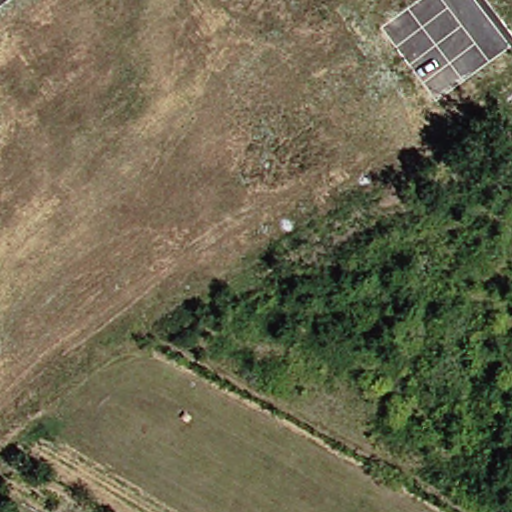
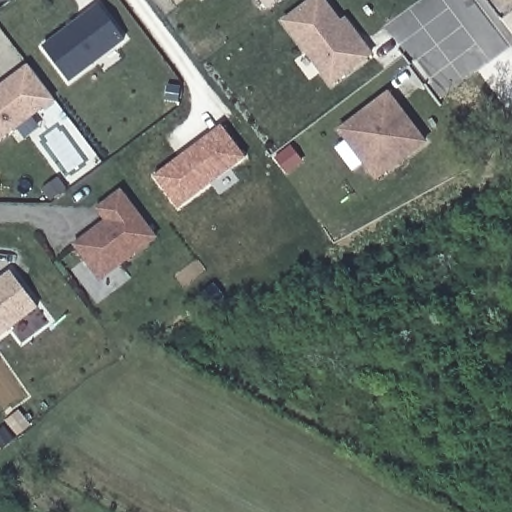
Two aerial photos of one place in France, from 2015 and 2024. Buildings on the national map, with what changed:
new [(375,55),(331,87),(282,22),(311,0),(325,0),(341,20),(346,17),(375,55)]
new [(99,4),(125,37),(70,80),(44,47),(99,4)]
new [(26,64),(51,96),(0,136),(0,84),(26,64)]
unchanged [(377,181),(338,130),(389,92),(428,141),(377,181)]
new [(179,209),(154,177),(222,125),(246,158),(179,209)]
new [(72,245),(105,222),(94,209),(122,189),(158,238),(100,282),(72,245)]
new [(8,271),(35,306),(0,334),(0,278),(8,271)]

